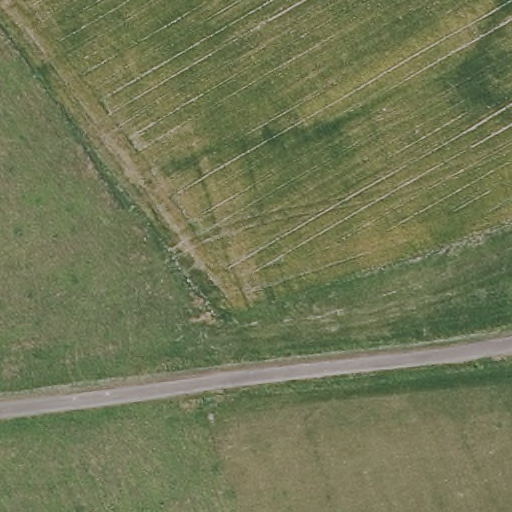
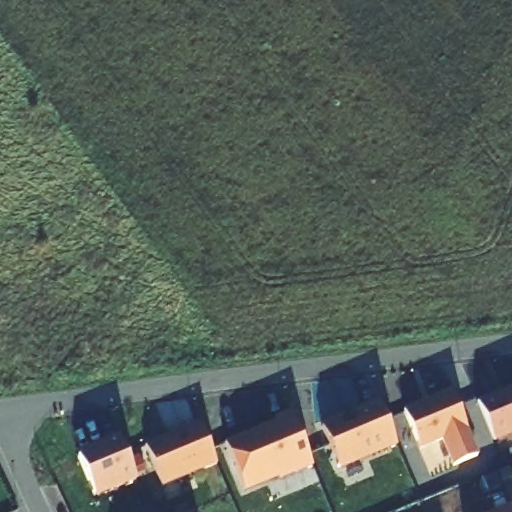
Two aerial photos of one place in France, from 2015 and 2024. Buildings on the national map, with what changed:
new [(476,405),(492,398),(493,400),(512,392),(512,435),(492,444),(476,405)]
new [(465,431),(465,432),(475,459),(452,468),(441,441),(418,451),(402,413),(423,405),(425,406),(436,402),(435,400),(450,394),(465,431)]
new [(395,447),(337,470),(321,430),(362,412),(361,410),(378,404),(395,447)]
new [(246,438),(247,440),(276,428),(273,422),(290,415),(311,468),(280,481),(276,479),(243,493),(223,447),(246,438)]
new [(216,468),(161,491),(145,450),(200,427),(216,468)]
new [(135,483),(94,500),(77,460),(103,449),(102,447),(118,440),(135,483)]

